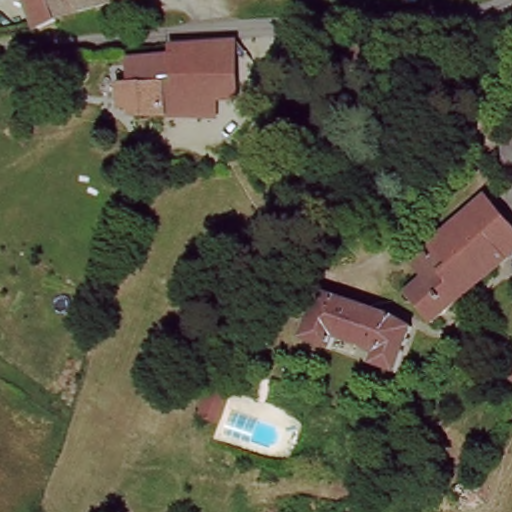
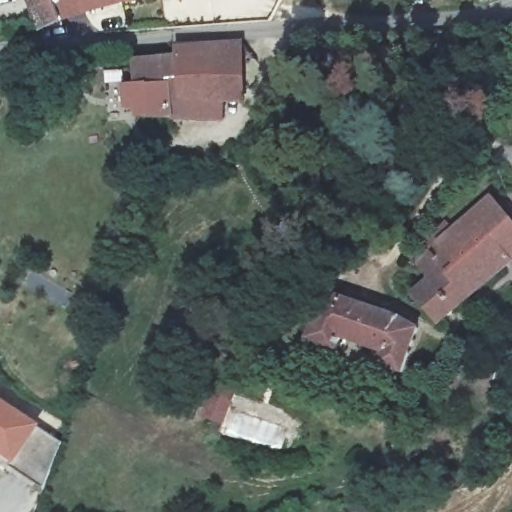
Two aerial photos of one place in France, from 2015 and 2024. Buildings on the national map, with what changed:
unchanged [(41,21),(35,0),(57,0),(62,16),(41,21)]
unchanged [(62,16),(57,0),(126,0),(62,16)]
unchanged [(426,6),(410,6),(410,0),(426,0),(426,6)]
unchanged [(239,43),(242,102),(220,104),(220,119),(206,114),(191,112),(134,114),(133,107),(125,107),(121,81),(130,81),(130,62),(172,58),(170,48),(239,43)]
unchanged [(86,54),(88,78),(52,81),(51,57),(86,54)]
unchanged [(496,198),(512,216),(512,263),(439,324),(417,298),(435,282),(420,262),(496,198)]
unchanged [(320,285),(412,316),(401,365),(378,358),(381,346),(339,331),(335,343),(304,332),(320,285)]
unchanged [(512,361),(512,362),(512,378),(505,375),(512,361)]
new [(40,428),(62,441),(43,490),(36,485),(33,490),(0,466),(0,400),(42,426),(40,428)]
unchanged [(477,512),(468,504),(457,492),(473,477),(484,488),(494,501),(480,512),(477,512)]

